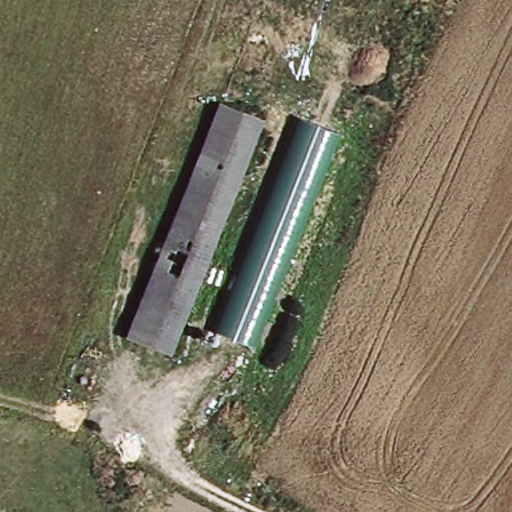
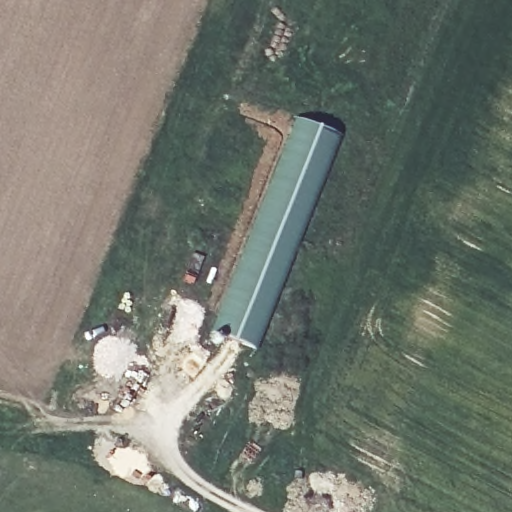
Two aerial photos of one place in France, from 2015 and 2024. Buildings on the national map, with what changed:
demolished [(169,358),(123,339),(221,102),(265,120),(169,358)]
unchanged [(256,350),(220,337),(217,349),(203,343),(208,330),(295,118),(342,136),(256,350)]

